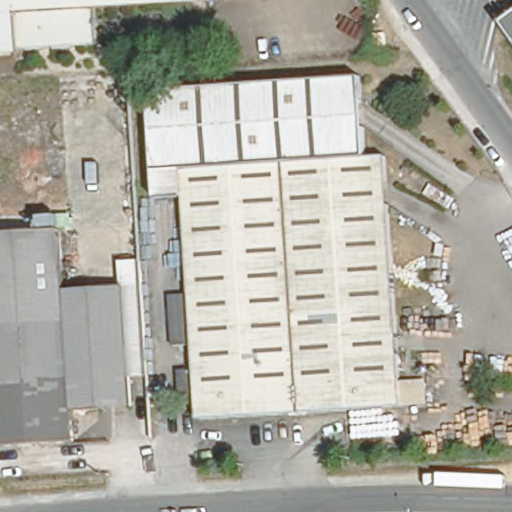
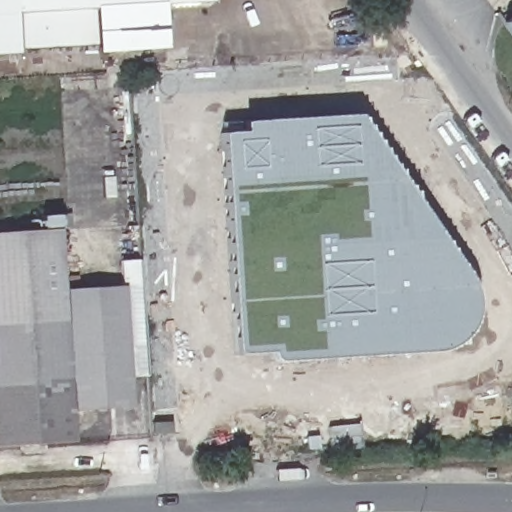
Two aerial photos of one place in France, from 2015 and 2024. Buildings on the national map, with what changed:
unchanged [(92,39),(12,45),(12,47),(0,49),(0,0),(170,0),(89,6),(92,39)]
new [(96,45),(92,45),(92,39),(89,6),(162,0),(167,49),(97,52),(96,45)]
unchanged [(502,22),(512,15),(512,36),(502,22)]
demolished [(346,115),(360,124),(362,155),(380,156),(397,402),(195,416),(194,394),(175,395),(173,368),(193,366),(190,343),(173,345),(169,291),(187,290),(180,193),(154,195),(148,87),(357,74),(358,101),(346,115)]
new [(234,354),(219,133),(242,131),(241,122),(357,115),(464,271),(471,283),(474,293),(475,304),(473,317),(467,330),(460,340),(447,347),(437,350),(277,361),(273,360),(270,358),(267,351),(234,354)]
unchanged [(65,290),(125,285),(125,272),(138,271),(145,371),(130,372),(132,405),(71,408),(73,438),(0,443),(0,233),(61,229),(65,290)]

